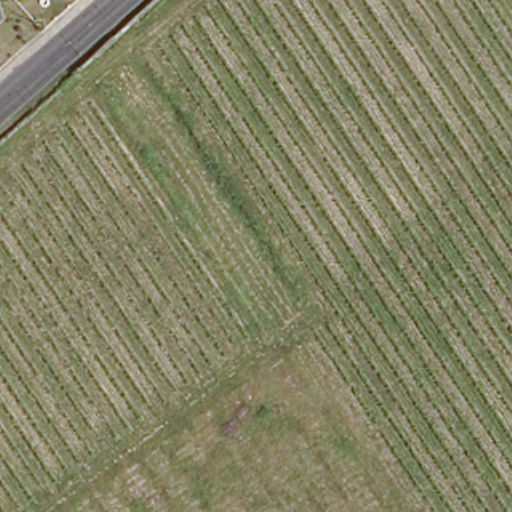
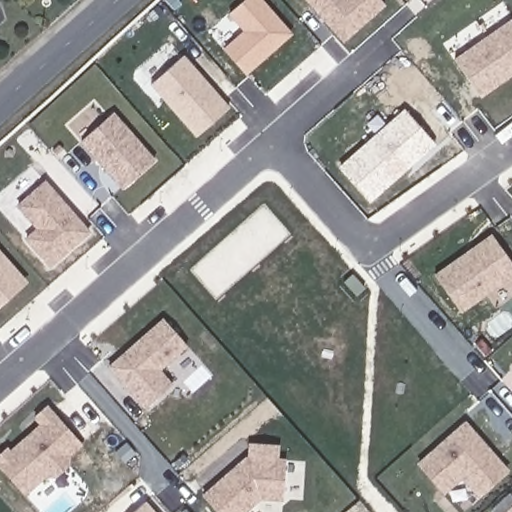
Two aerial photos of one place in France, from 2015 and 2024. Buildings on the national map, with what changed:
new [(225,50),(246,32),(231,15),(248,0),(261,0),(291,35),(246,74),(225,50)]
new [(343,41),(307,0),(381,0),(385,4),(343,41)]
new [(512,22),(512,74),(480,97),(455,61),(511,21),(512,22)]
new [(229,109),(198,136),(152,85),(184,57),(229,109)]
new [(381,112),(392,123),(405,112),(433,145),(370,201),(340,168),(373,140),(363,129),(381,112)]
new [(155,161),(124,189),(82,142),(114,114),(155,161)]
new [(90,234),(52,266),(30,240),(40,230),(21,209),(47,186),(90,234)]
new [(512,276),(461,312),(435,276),(492,236),(512,264),(512,276)]
new [(25,285),(0,306),(0,257),(25,285)]
new [(365,290),(358,297),(344,283),(351,275),(365,290)]
new [(187,346),(159,370),(172,385),(146,409),(110,368),(164,320),(187,346)]
new [(81,446),(69,456),(69,465),(56,476),(47,475),(26,495),(0,466),(0,457),(7,450),(10,453),(42,425),(35,418),(47,407),(81,446)]
new [(507,471),(479,496),(462,477),(445,493),(420,465),(438,447),(446,448),(456,439),(452,435),(465,423),(507,471)]
new [(277,445),(277,460),(286,461),(283,500),(261,498),(246,512),(217,512),(204,497),(247,460),(250,460),(251,444),(277,445)]
new [(153,512),(135,512),(145,503),(153,512)]
new [(512,512),(506,512),(512,507),(512,512)]

